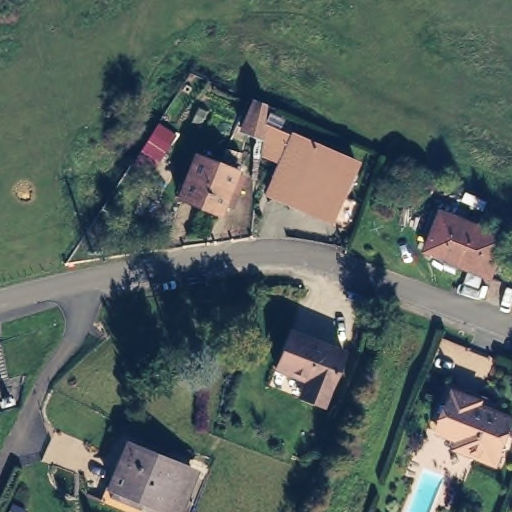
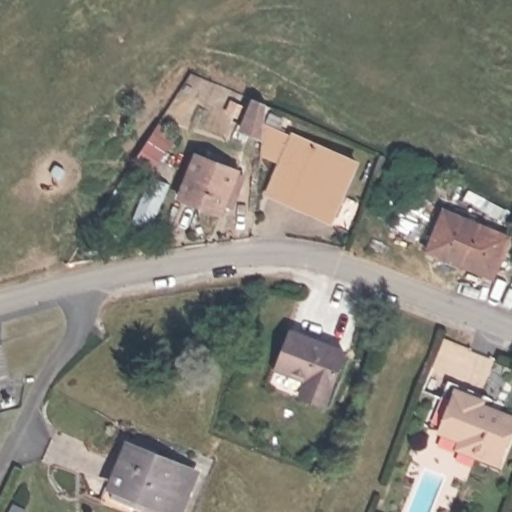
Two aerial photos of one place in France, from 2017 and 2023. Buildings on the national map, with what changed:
unchanged [(330,220),(270,193),(282,164),(260,154),(262,139),(242,130),(252,99),(266,105),(263,124),(355,165),(330,220)]
unchanged [(232,200),(225,197),(220,210),(179,194),(197,152),(236,168),(228,187),(236,190),(232,200)]
unchanged [(507,233),(490,272),(428,246),(444,207),(507,233)]
unchanged [(302,337),(300,341),(316,347),(317,344),(338,352),(317,406),(294,397),(300,381),(270,370),(285,332),(302,337)]
unchanged [(485,407),(512,418),(512,440),(502,465),(462,449),(465,442),(443,433),(460,392),(487,402),(485,407)]
unchanged [(197,468),(180,509),(149,497),(144,507),(115,495),(120,485),(116,483),(135,442),(197,468)]

